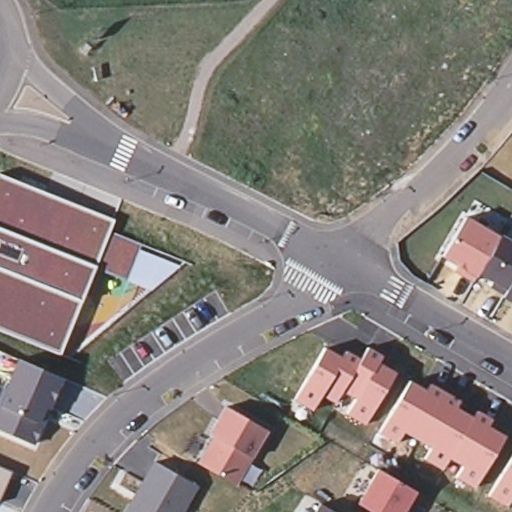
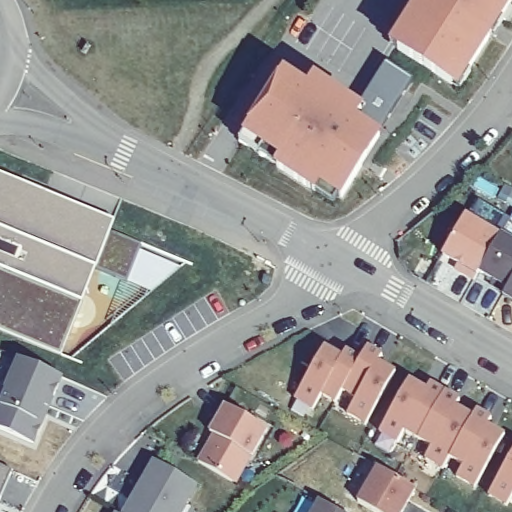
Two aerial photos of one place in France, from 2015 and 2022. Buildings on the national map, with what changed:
new [(512,0),(512,6),(459,91),(391,46),(420,0),(512,0)]
new [(412,81),(377,134),(382,137),(342,201),(320,186),(315,195),(274,166),(279,158),(243,136),(285,73),(309,88),(315,76),(362,108),(385,63),(412,81)]
unchanged [(116,220),(111,234),(142,245),(140,250),(182,266),(152,291),(96,269),(62,355),(0,330),(0,174),(116,220)]
unchanged [(512,303),(502,298),(506,292),(480,276),(475,283),(455,273),(459,268),(442,257),(465,216),(512,241),(512,303)]
unchanged [(325,348),(344,357),(347,352),(364,359),(370,348),(384,356),(380,364),(395,373),(365,426),(347,415),(353,401),(340,393),(334,403),(320,396),(312,410),(295,400),(325,348)]
unchanged [(16,360),(62,379),(34,445),(0,430),(0,400),(16,360)]
unchanged [(410,382),(426,391),(430,386),(462,402),(458,411),(475,418),(479,412),(493,419),(488,428),(503,436),(475,487),(457,476),(461,466),(449,458),(442,469),(424,460),(430,447),(402,431),(396,442),(379,432),(410,382)]
unchanged [(214,437),(210,435),(224,407),(267,431),(237,485),(199,465),(214,437)]
unchanged [(512,495),(506,505),(490,496),(512,457),(512,495)]
unchanged [(157,464),(198,488),(184,512),(129,512),(157,464)]
unchanged [(12,471),(0,500),(0,466),(12,471)]
unchanged [(377,470),(415,492),(403,512),(372,512),(358,505),(377,470)]
unchanged [(320,503),(334,512),(314,512),(320,503)]

